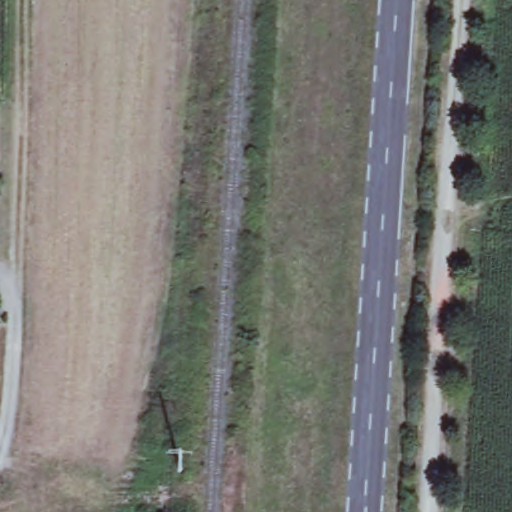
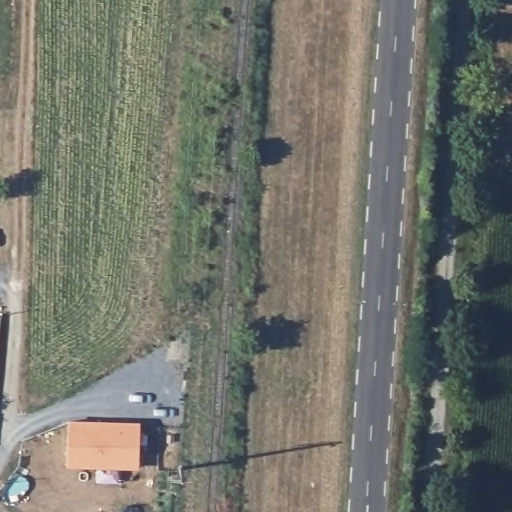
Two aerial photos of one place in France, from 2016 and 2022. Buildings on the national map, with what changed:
new [(70,423),(139,426),(137,469),(68,466),(70,423)]

